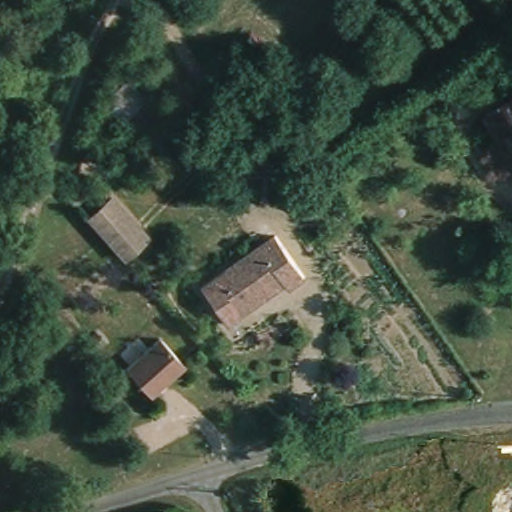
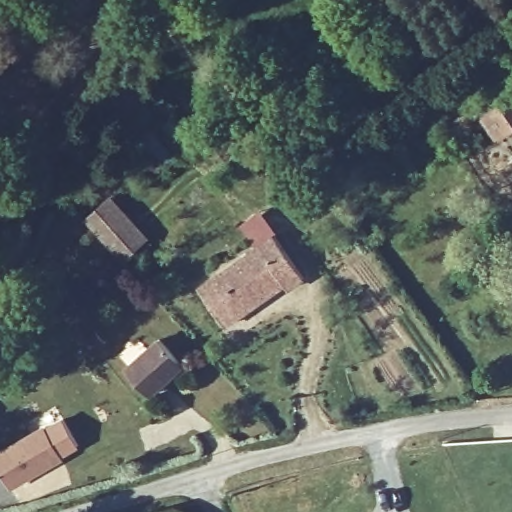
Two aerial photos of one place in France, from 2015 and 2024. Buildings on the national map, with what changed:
unchanged [(498,136),(483,115),(512,95),(512,126),(498,136)]
unchanged [(119,200),(154,239),(130,260),(95,220),(119,200)]
unchanged [(220,320),(198,288),(274,235),(303,277),(287,288),(283,283),(249,308),(224,325),(220,320)]
unchanged [(163,342),(186,368),(152,399),(129,373),(163,342)]
new [(63,458),(11,488),(0,469),(0,454),(45,428),(63,458)]

